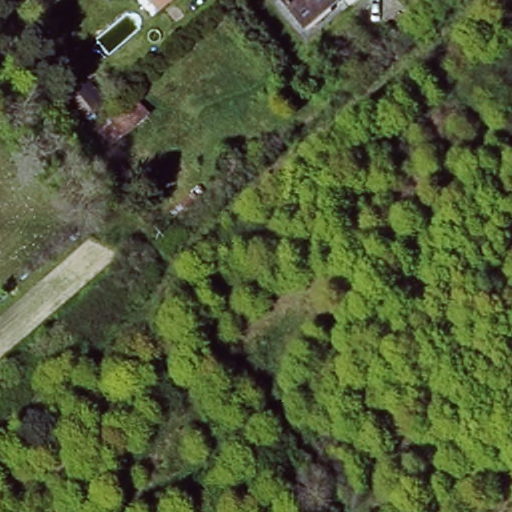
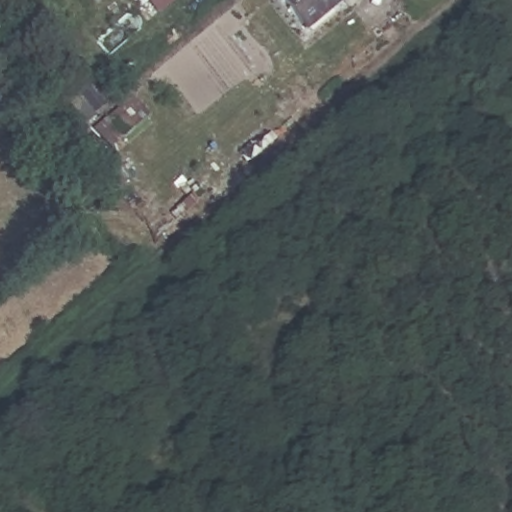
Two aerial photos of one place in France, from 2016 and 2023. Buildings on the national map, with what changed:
unchanged [(145,0),(147,0),(146,1),(145,0)]
unchanged [(284,0),(341,0),(307,29),(284,0)]
unchanged [(126,131),(110,111),(125,98),(145,81),(151,88),(162,102),(126,131)]

